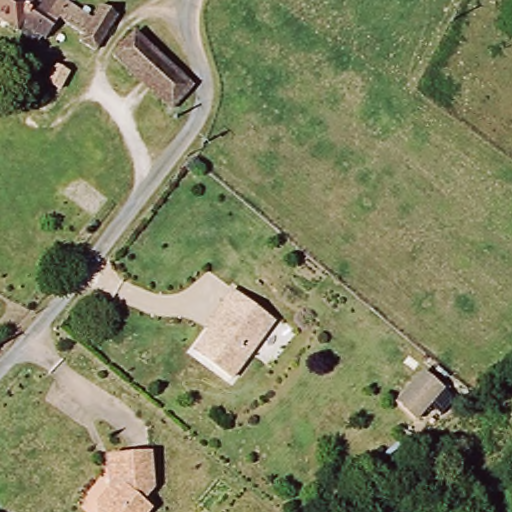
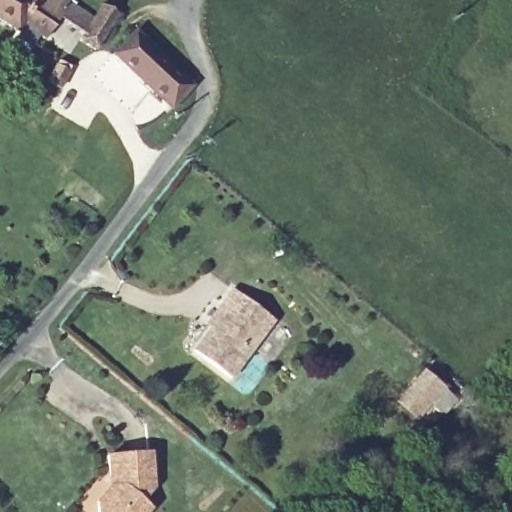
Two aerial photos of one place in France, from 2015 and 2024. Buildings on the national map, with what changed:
unchanged [(81,36),(59,21),(46,40),(20,25),(15,32),(0,22),(0,0),(54,0),(90,22),(97,9),(115,19),(95,55),(76,43),(81,36)]
unchanged [(169,116),(112,64),(136,35),(194,91),(169,116)]
unchanged [(280,321),(235,379),(198,352),(215,328),(211,325),(227,303),(237,289),(280,321)]
unchanged [(410,396),(427,375),(457,401),(432,431),(420,422),(401,406),(410,396)]
unchanged [(144,512),(100,512),(97,505),(109,487),(107,452),(147,449),(150,485),(140,499),(149,505),(144,512)]

